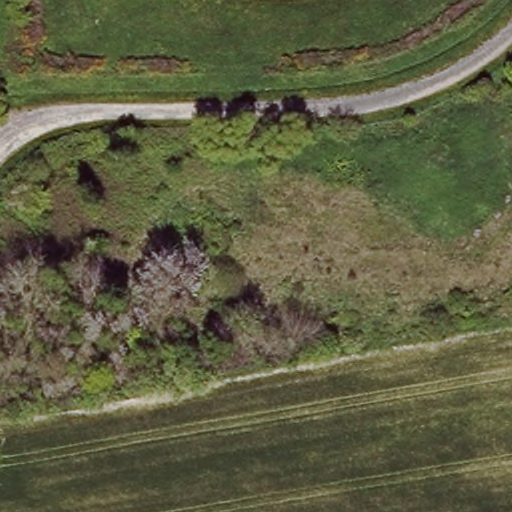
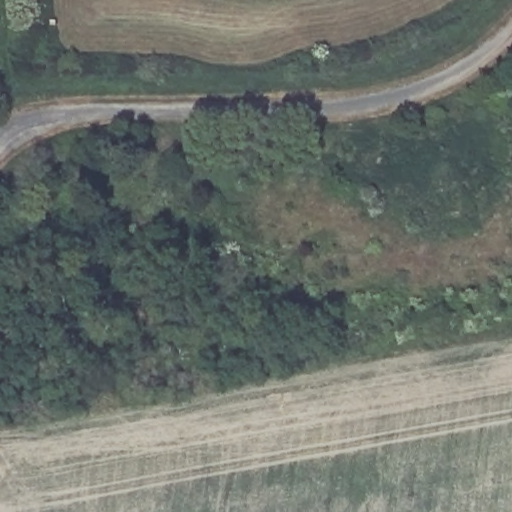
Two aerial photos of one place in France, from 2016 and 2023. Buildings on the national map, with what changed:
[]

